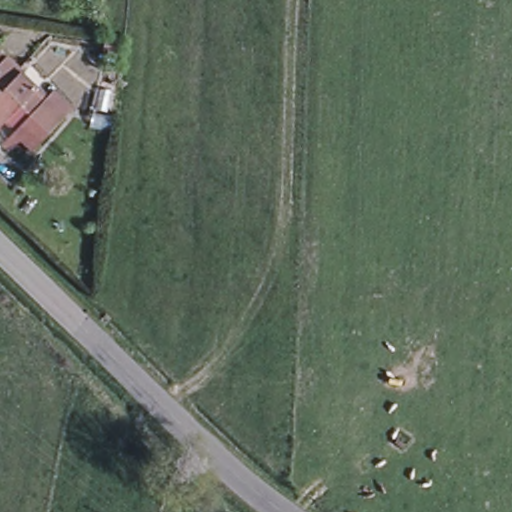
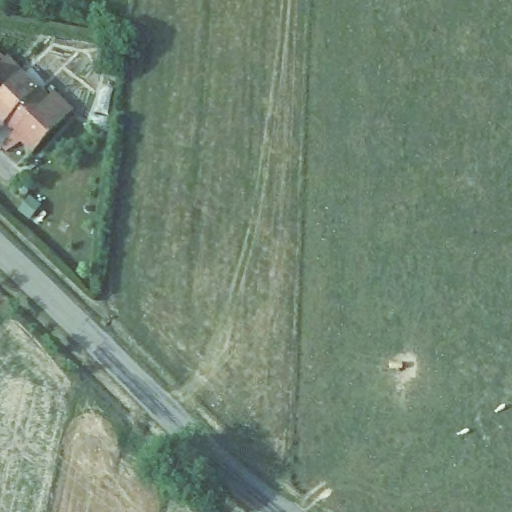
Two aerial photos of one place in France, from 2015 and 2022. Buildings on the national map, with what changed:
unchanged [(5,124),(0,119),(0,94),(3,96),(23,76),(38,91),(34,95),(44,105),(46,103),(64,120),(34,152),(16,135),(19,132),(8,121),(5,124)]

